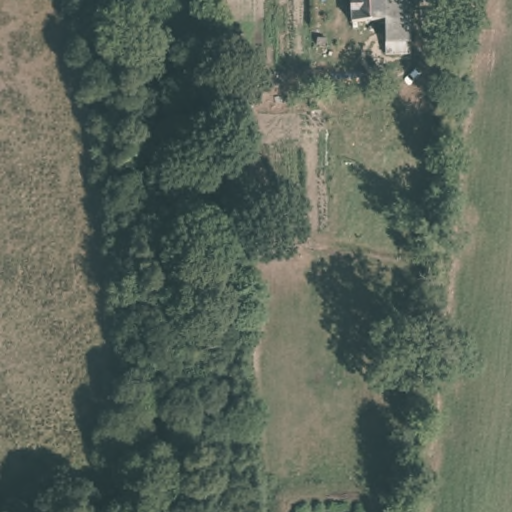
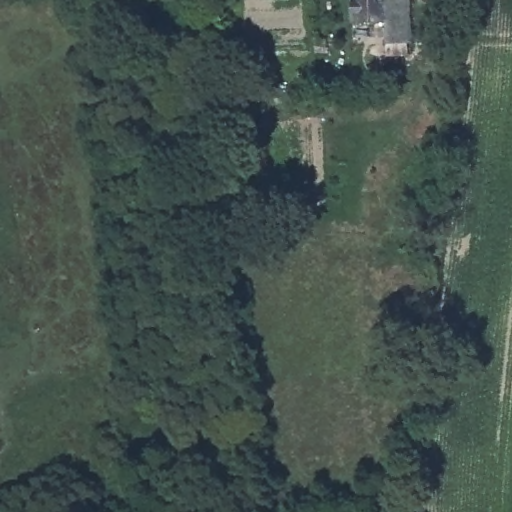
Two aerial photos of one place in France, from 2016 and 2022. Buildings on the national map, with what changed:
unchanged [(411,59),(386,61),(385,27),(352,29),(351,0),(408,0),(411,59)]

